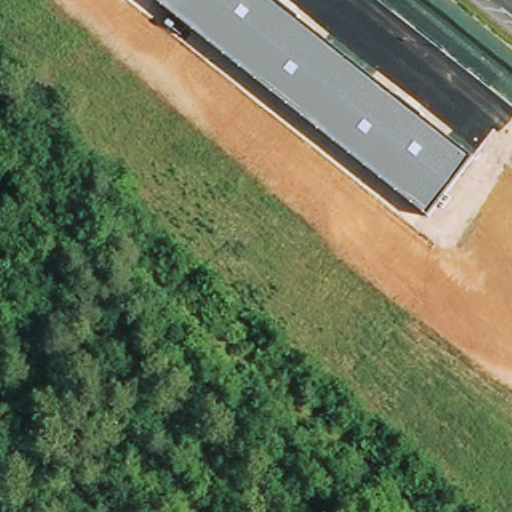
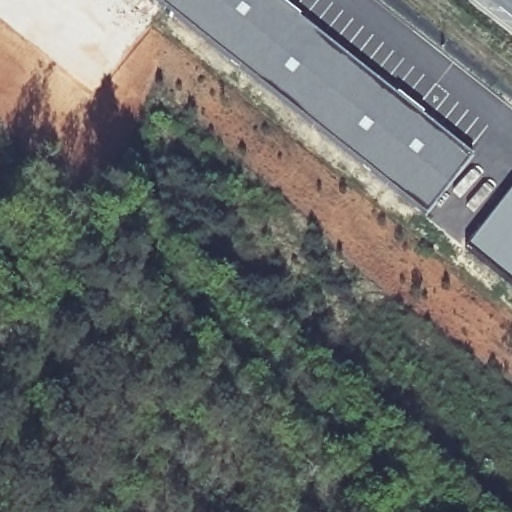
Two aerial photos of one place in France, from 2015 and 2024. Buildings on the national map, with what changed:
unchanged [(425,216),(154,0),(274,0),(475,155),(425,216)]
new [(512,277),(471,244),(512,193),(512,277)]

